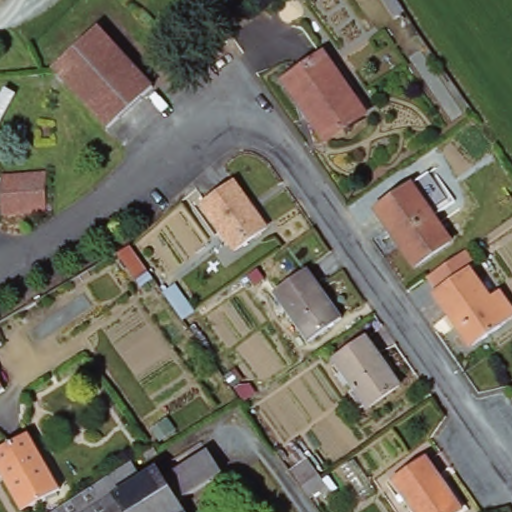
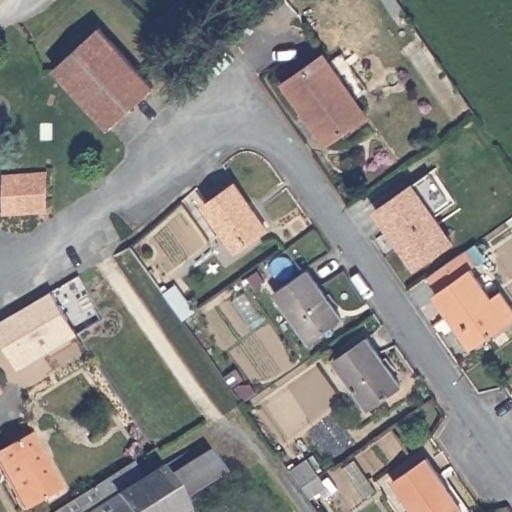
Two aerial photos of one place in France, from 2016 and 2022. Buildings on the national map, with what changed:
unchanged [(388,0),(400,0),(410,14),(401,20),(388,0)]
unchanged [(53,68),(96,28),(150,84),(107,124),(53,68)]
unchanged [(285,80),(320,55),(337,79),(301,104),(285,80)]
unchanged [(337,79),(362,113),(326,139),(301,104),(337,79)]
unchanged [(3,177),(45,172),(44,209),(1,215),(3,177)]
unchanged [(234,183),(266,228),(235,250),(202,204),(234,183)]
unchanged [(415,187),(455,243),(420,269),(380,212),(415,187)]
unchanged [(512,309),(512,317),(506,321),(471,344),(434,293),(437,290),(428,278),(465,252),(475,265),(468,269),(489,298),(500,291),(512,309)]
unchanged [(309,273),(343,321),(311,344),(276,295),(309,273)]
unchanged [(180,289),(199,316),(190,322),(170,295),(180,289)]
new [(0,340),(0,322),(51,291),(75,334),(16,368),(0,340)]
unchanged [(366,340),(398,386),(367,410),(333,363),(366,340)]
unchanged [(8,394),(0,398),(0,379),(7,393),(8,394)]
unchanged [(0,474),(0,451),(26,436),(58,490),(22,512),(0,474)]
unchanged [(63,506),(66,504),(82,494),(94,487),(102,481),(105,484),(115,477),(117,476),(122,482),(127,488),(145,479),(156,473),(162,481),(176,473),(182,469),(206,456),(209,459),(221,478),(207,487),(204,488),(178,504),(180,508),(183,512),(53,512),(63,506)]
unchanged [(392,481),(425,458),(443,483),(410,506),(392,481)]
unchanged [(301,469),(316,461),(326,474),(336,486),(321,496),(312,484),(301,469)]
unchanged [(410,506),(443,483),(461,509),(456,512),(415,512),(410,506)]

